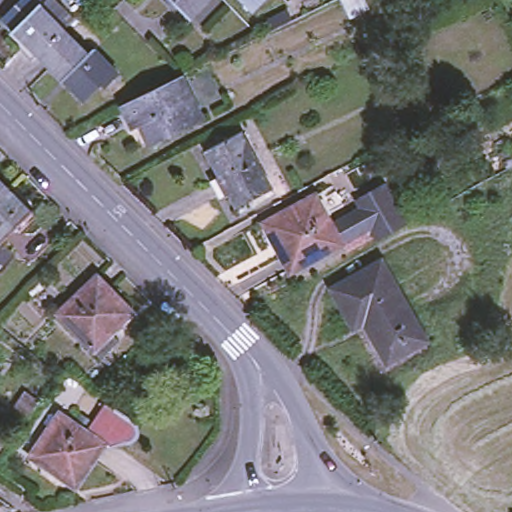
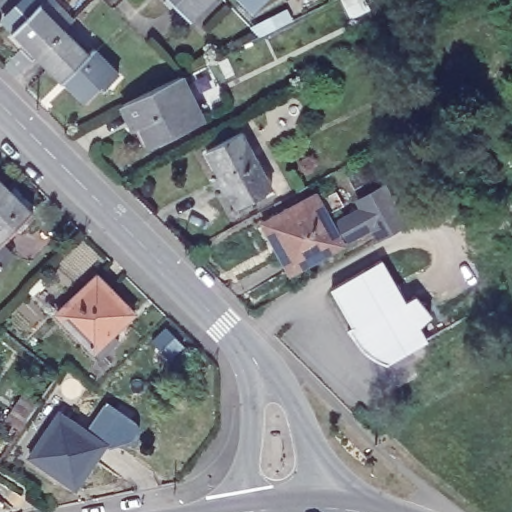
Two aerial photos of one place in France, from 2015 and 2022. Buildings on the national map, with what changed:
unchanged [(17,51),(24,44),(10,30),(0,21),(21,0),(32,0),(37,5),(35,6),(36,7),(43,0),(49,0),(70,20),(60,30),(85,54),(86,55),(62,80),(36,55),(29,63),(17,51)]
unchanged [(186,13),(173,0),(199,0),(186,13)]
unchanged [(239,14),(224,0),(253,0),(239,14)]
unchanged [(89,50),(115,76),(102,88),(99,84),(83,101),(62,80),(86,55),(85,54),(89,50)]
unchanged [(172,82),(192,119),(150,142),(140,124),(132,126),(122,106),(172,82)]
unchanged [(237,127),(269,185),(235,203),(204,146),(237,127)]
unchanged [(0,187),(0,181),(3,184),(0,187)]
unchanged [(340,239),(287,267),(260,219),(312,190),(330,181),(340,200),(324,210),(329,220),(340,239)]
unchanged [(368,224),(340,239),(329,220),(358,205),(354,197),(382,182),(404,222),(375,238),(368,224)]
unchanged [(28,209),(0,237),(0,187),(3,184),(28,209)]
unchanged [(0,256),(0,238),(9,247),(0,256)]
unchanged [(353,325),(332,288),(380,261),(414,318),(375,338),(365,319),(353,325)]
unchanged [(100,353),(93,347),(55,309),(94,271),(132,308),(110,329),(117,336),(100,353)]
unchanged [(425,337),(387,359),(375,338),(414,318),(425,337)]
unchanged [(104,399),(132,419),(134,423),(132,432),(107,442),(102,438),(84,427),(104,399)]
unchanged [(30,445),(56,409),(72,419),(77,411),(85,416),(80,424),(84,427),(102,438),(71,482),(46,465),(26,452),(30,445)]

